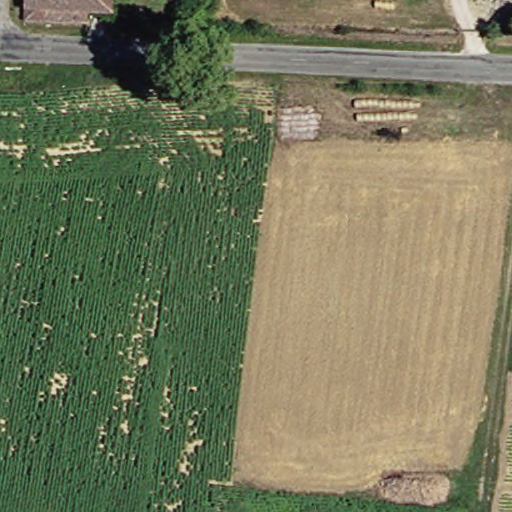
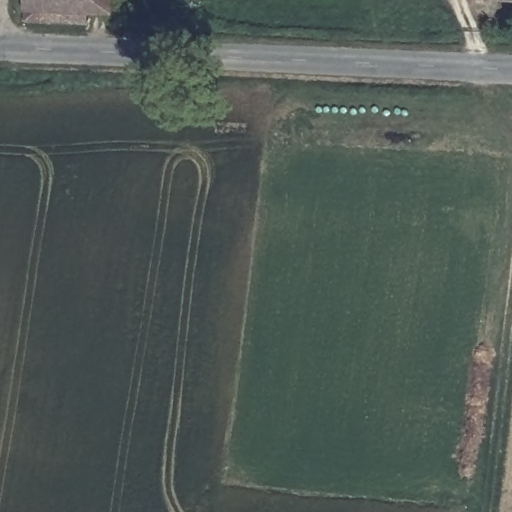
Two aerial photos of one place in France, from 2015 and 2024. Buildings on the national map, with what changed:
unchanged [(88,27),(25,22),(28,0),(88,0),(88,15),(88,27)]
unchanged [(88,15),(88,0),(120,0),(119,16),(88,15)]
unchanged [(491,0),(512,0),(512,1),(502,1),(491,0)]

